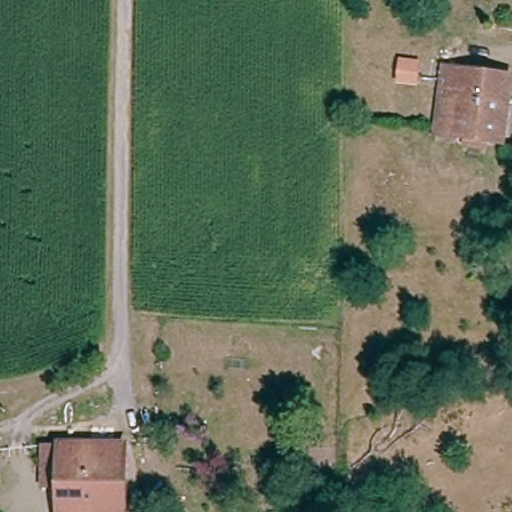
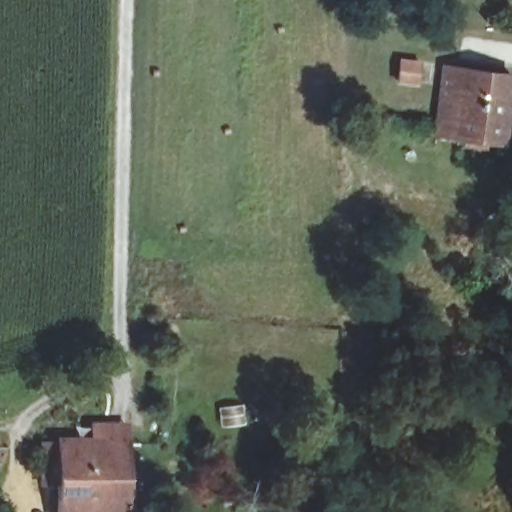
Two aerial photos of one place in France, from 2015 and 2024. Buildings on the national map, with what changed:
unchanged [(426,67),(423,88),(398,83),(401,62),(426,67)]
unchanged [(463,93),(460,102),(447,100),(452,70),(512,79),(512,95),(511,101),(463,93)]
unchanged [(441,136),(447,100),(460,102),(463,93),(511,101),(505,147),(441,136)]
unchanged [(67,512),(67,488),(45,488),(47,442),(68,444),(120,446),(131,446),(130,512),(67,512)]

